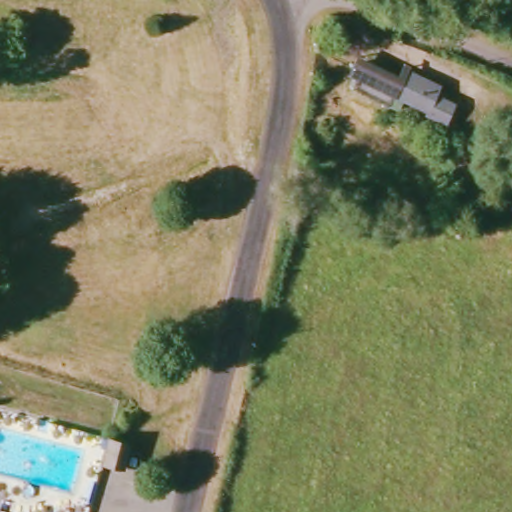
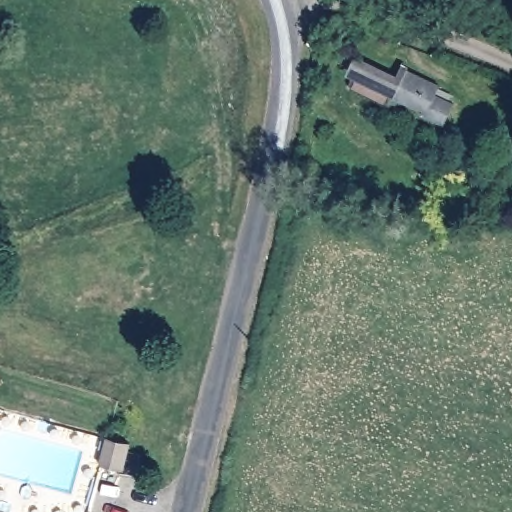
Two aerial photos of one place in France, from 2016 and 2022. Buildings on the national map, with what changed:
unchanged [(357,90),(369,61),(404,78),(397,94),(392,106),(357,90)]
unchanged [(408,69),(444,86),(439,95),(459,104),(449,124),(429,114),(431,111),(397,94),(404,78),(408,69)]
unchanged [(123,470),(100,465),(108,437),(129,443),(123,470)]

